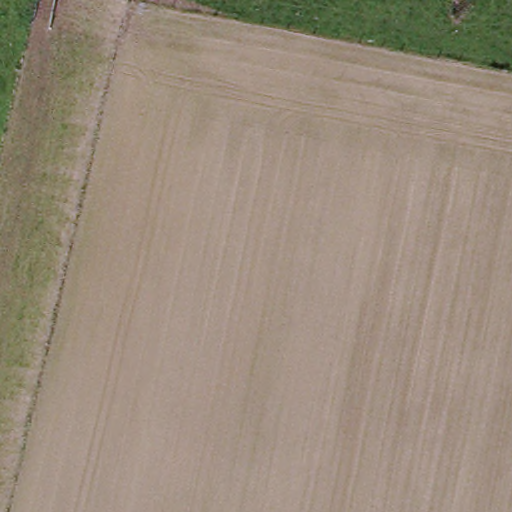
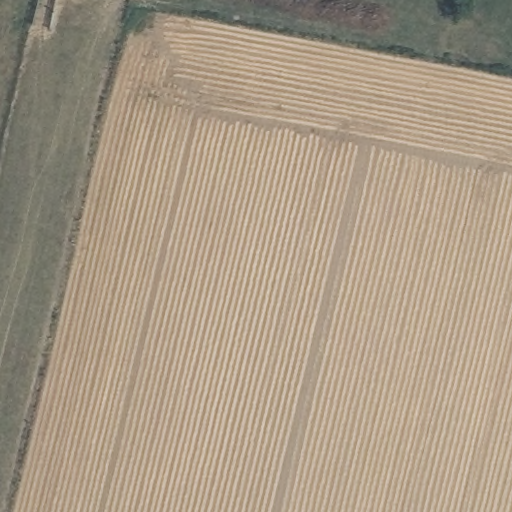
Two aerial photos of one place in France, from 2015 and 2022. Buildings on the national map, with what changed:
[]

